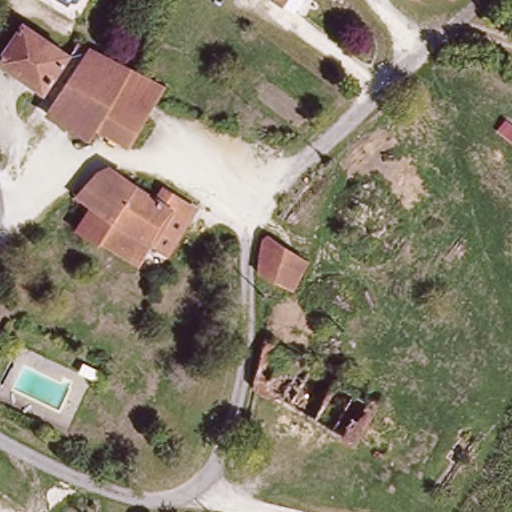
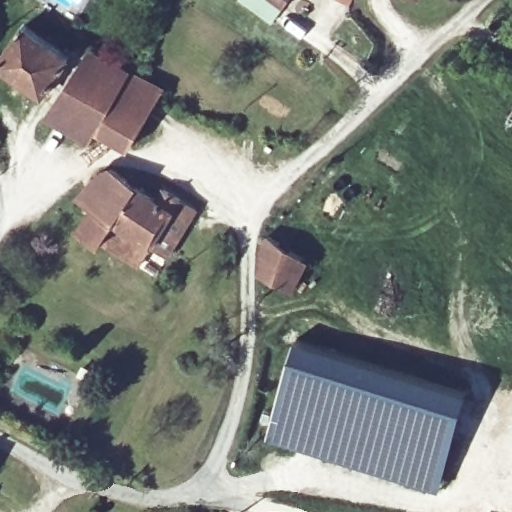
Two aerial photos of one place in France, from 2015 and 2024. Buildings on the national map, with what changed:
unchanged [(292,11),(274,0),(299,0),(292,11)]
unchanged [(417,0),(423,0),(421,2),(417,0)]
unchanged [(455,2),(450,0),(458,0),(455,2)]
unchanged [(0,66),(25,28),(70,60),(44,96),(0,66)]
unchanged [(60,107),(44,96),(70,60),(79,46),(95,54),(60,107)]
unchanged [(166,94),(135,149),(105,133),(99,143),(75,134),(50,119),(60,107),(95,54),(166,94)]
unchanged [(166,269),(155,263),(113,239),(110,245),(87,230),(95,217),(89,210),(95,202),(89,196),(107,176),(119,176),(165,203),(171,193),(190,202),(182,215),(195,222),(166,269)]
unchanged [(292,294),(260,274),(258,256),(266,236),(310,268),(292,294)]
demolished [(251,384),(261,341),(381,412),(359,449),(251,384)]
new [(296,341),(470,391),(443,486),(268,439),(296,341)]

